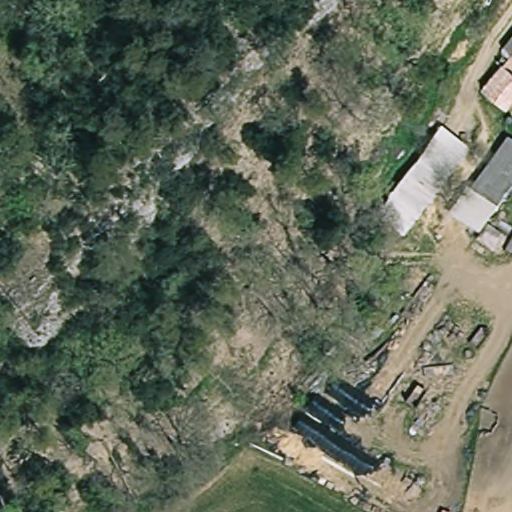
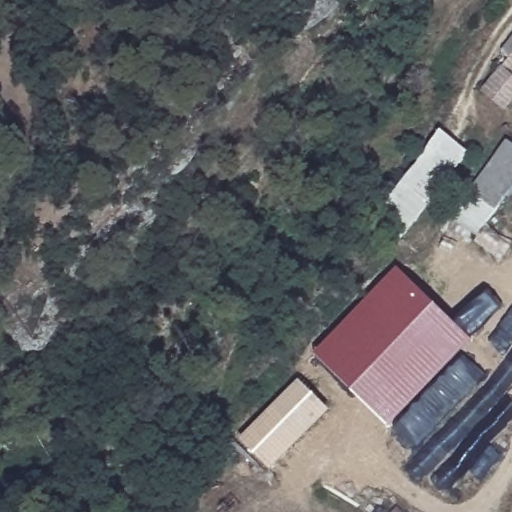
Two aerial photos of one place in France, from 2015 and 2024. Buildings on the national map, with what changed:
unchanged [(484,90),(504,65),(505,66),(512,57),(512,103),(508,107),(507,108),(484,90)]
unchanged [(512,147),(512,186),(495,210),(470,192),(505,142),(512,147)]
unchanged [(431,145),(460,169),(420,216),(393,195),(431,145)]
new [(470,339),(388,426),(313,354),(397,267),(470,339)]
new [(300,377),(331,408),(271,471),(239,439),(300,377)]

